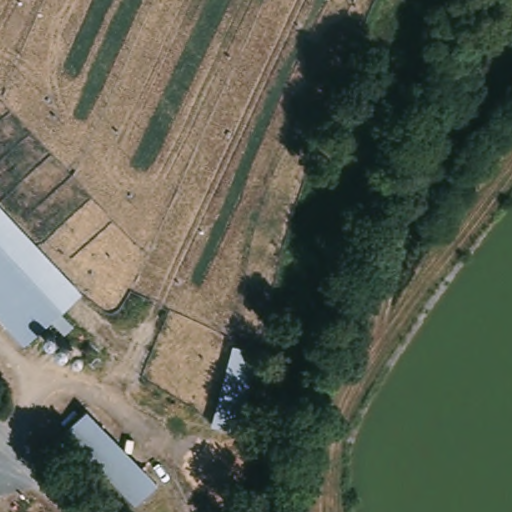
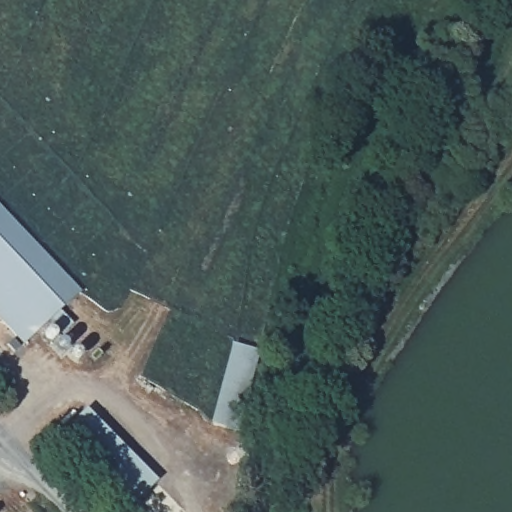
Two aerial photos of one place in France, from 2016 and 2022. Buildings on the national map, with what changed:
unchanged [(83,322),(48,358),(0,309),(0,235),(66,307),(83,322)]
unchanged [(243,432),(214,426),(236,344),(261,350),(243,432)]
unchanged [(136,508),(64,432),(91,407),(164,482),(136,508)]

